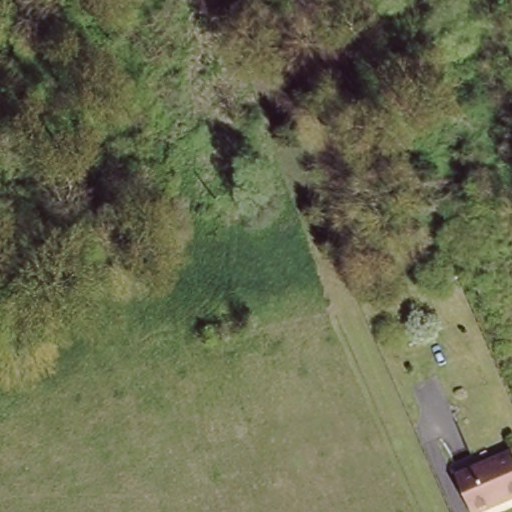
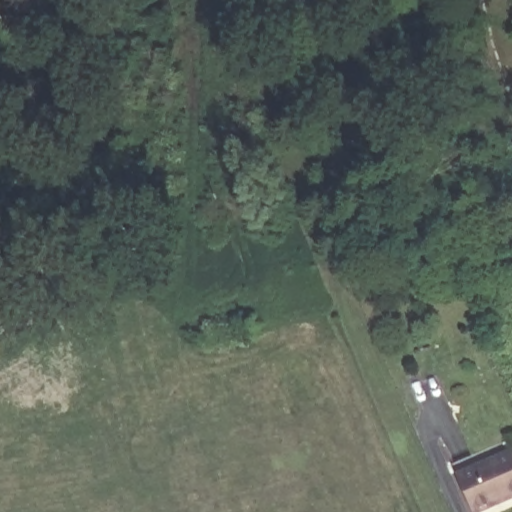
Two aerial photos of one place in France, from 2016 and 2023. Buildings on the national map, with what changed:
unchanged [(512,498),(481,512),(475,512),(460,477),(512,454),(512,498)]

